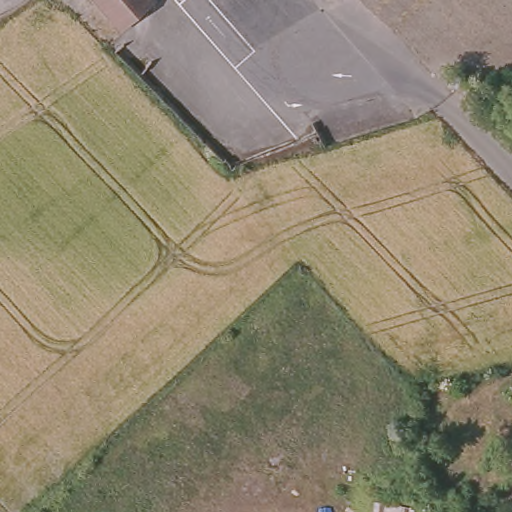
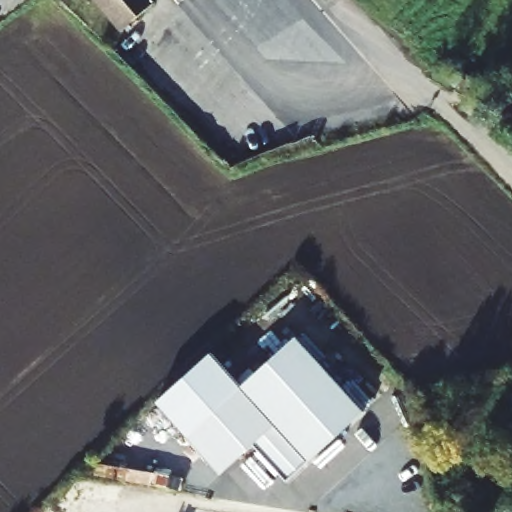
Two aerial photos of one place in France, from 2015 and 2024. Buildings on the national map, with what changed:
unchanged [(115,38),(84,0),(155,0),(158,3),(116,36),(115,38)]
unchanged [(462,76),(481,87),(474,99),(455,88),(462,76)]
new [(360,412),(280,483),(246,447),(215,476),(153,407),(208,356),(240,389),(290,339),(360,412)]
demolished [(415,506),(413,512),(373,512),(375,500),(415,506)]

